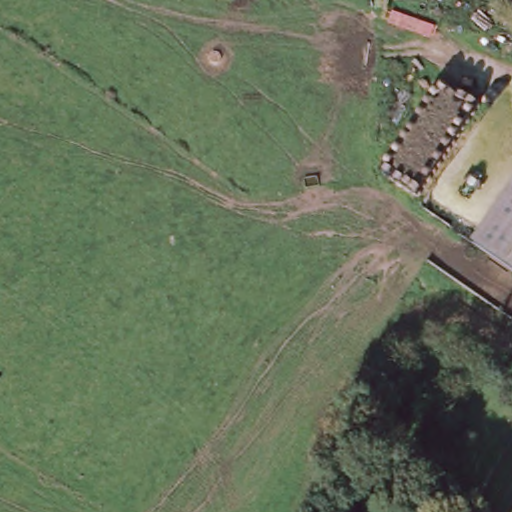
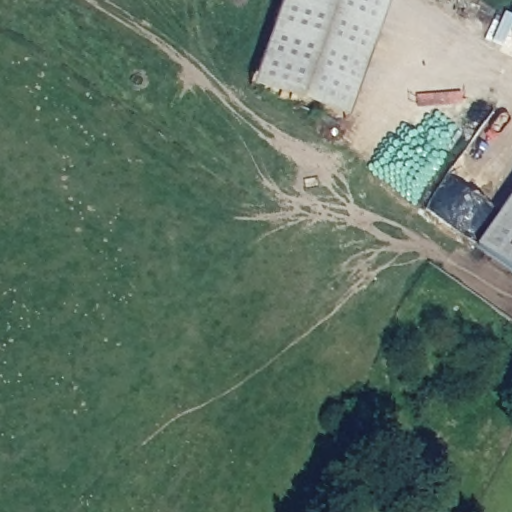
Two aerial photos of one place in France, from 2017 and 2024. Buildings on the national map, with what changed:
unchanged [(235,0),(238,0),(238,1),(235,0)]
new [(280,0),(388,0),(346,121),(249,87),(280,0)]
unchanged [(471,247),(512,188),(512,275),(471,247)]

